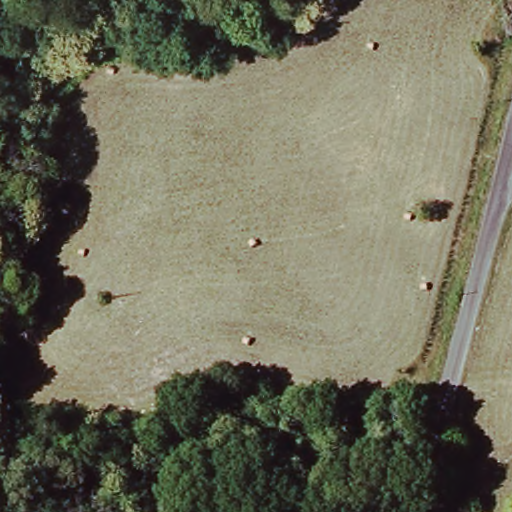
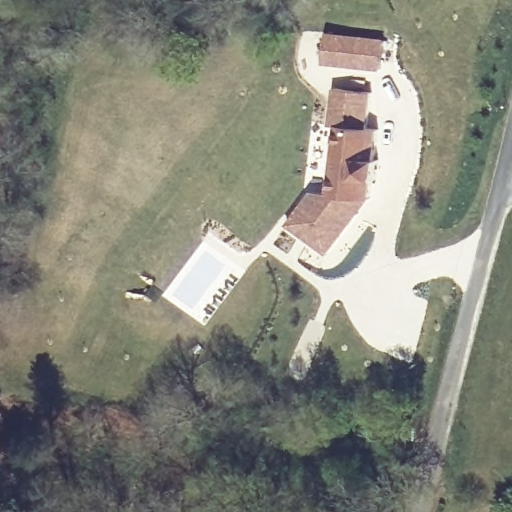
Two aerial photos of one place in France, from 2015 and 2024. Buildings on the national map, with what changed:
new [(327,33),(382,39),(380,70),(323,64),(327,33)]
new [(370,95),(367,130),(377,130),(367,200),(327,255),(287,225),(312,192),(327,194),(333,129),(325,128),(332,88),(370,95)]
new [(218,273),(189,312),(170,296),(197,258),(218,273)]

